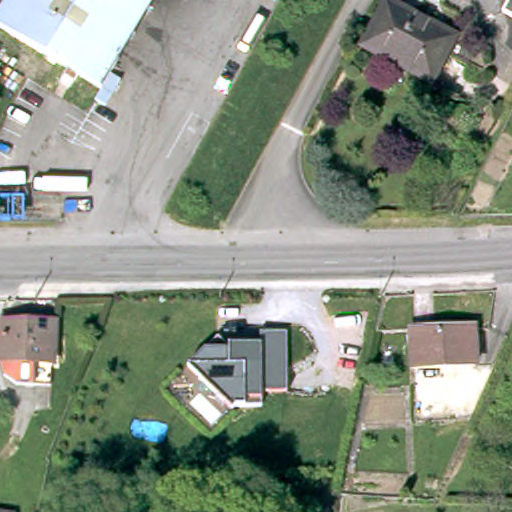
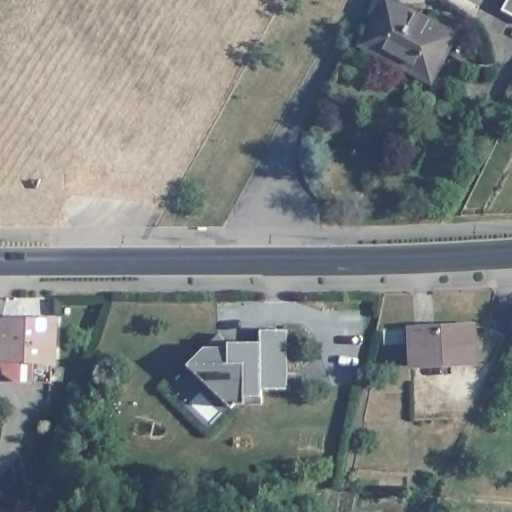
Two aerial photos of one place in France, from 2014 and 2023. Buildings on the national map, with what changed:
demolished [(5,0),(94,0),(59,61),(0,25),(0,8),(5,0)]
demolished [(66,65),(59,61),(94,0),(156,0),(102,88),(78,72),(66,65)]
unchanged [(435,86),(370,51),(359,45),(385,0),(395,5),(460,40),(435,86)]
new [(508,0),(512,0),(512,15),(502,9),(508,0)]
demolished [(512,9),(512,22),(507,19),(512,9)]
unchanged [(55,325),(52,363),(3,362),(5,325),(55,325)]
unchanged [(472,328),(474,364),(414,367),(412,330),(472,328)]
unchanged [(285,330),(285,390),(262,389),(262,397),(245,396),(245,404),(236,403),(232,408),(189,367),(204,346),(217,336),(227,342),(259,342),(260,330),(285,330)]
unchanged [(11,512),(0,512),(0,510),(12,511),(11,512)]

